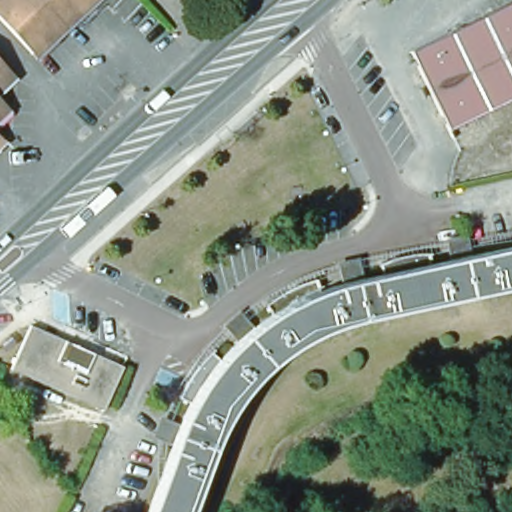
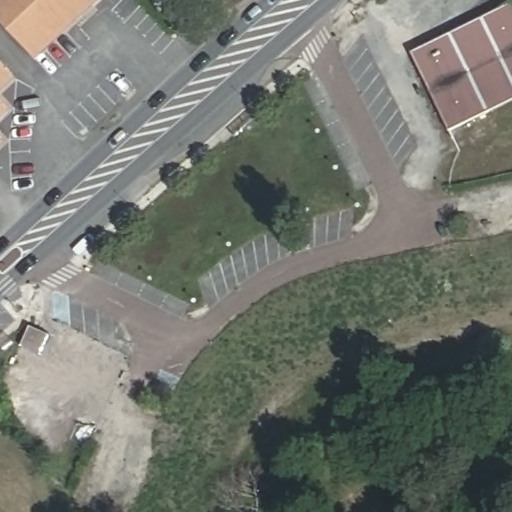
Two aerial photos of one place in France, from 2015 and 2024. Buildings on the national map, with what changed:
unchanged [(0,21),(0,0),(98,0),(33,59),(0,21)]
unchanged [(452,134),(415,55),(512,8),(512,104),(490,116),(452,134)]
unchanged [(0,86),(0,63),(11,77),(0,86)]
unchanged [(0,111),(0,104),(4,108),(0,111)]
demolished [(402,315),(393,317),(371,322),(350,327),(328,335),(316,340),(302,346),(290,354),(277,362),(265,372),(255,383),(248,392),(237,406),(227,422),(218,438),(210,455),(188,512),(147,512),(150,503),(164,468),(184,413),(185,413),(196,396),(182,388),(211,350),(225,360),(234,350),(245,339),(257,329),(261,326),(270,320),(281,313),(285,312),(302,303),(320,296),(323,295),(341,288),(342,288),(360,284),(380,281),(376,267),(424,256),(427,270),(512,252),(512,292),(402,315)]
demolished [(302,303),(285,312),(281,313),(270,320),(261,304),(278,295),(296,286),(311,280),(313,283),(320,296),(302,303)]
unchanged [(120,367),(100,411),(8,371),(28,326),(120,367)]

